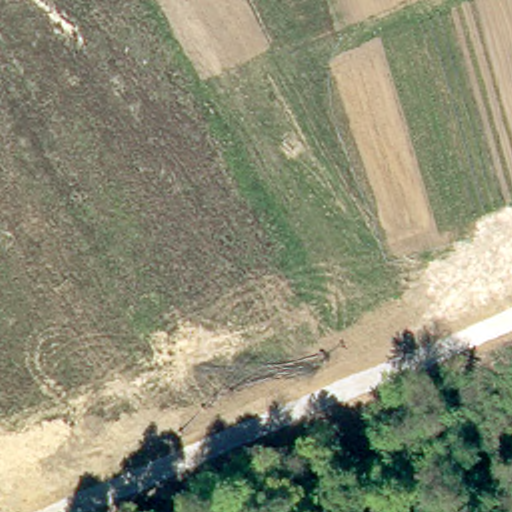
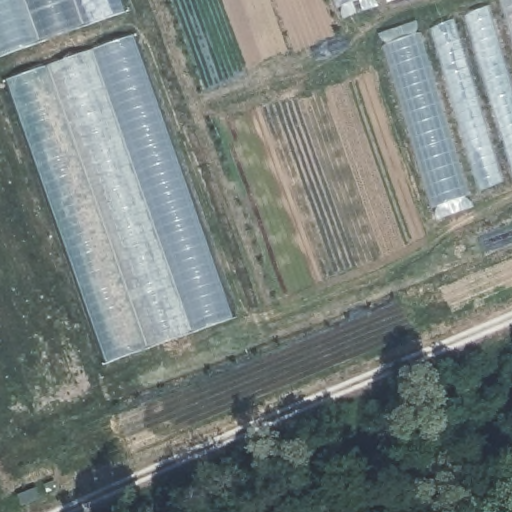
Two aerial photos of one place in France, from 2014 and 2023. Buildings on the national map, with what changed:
new [(0,57),(0,0),(120,0),(125,14),(0,57)]
new [(333,0),(361,0),(335,9),(333,0)]
new [(431,208),(382,44),(493,0),(512,0),(512,175),(431,208)]
new [(130,35),(232,319),(104,362),(2,79),(130,35)]

